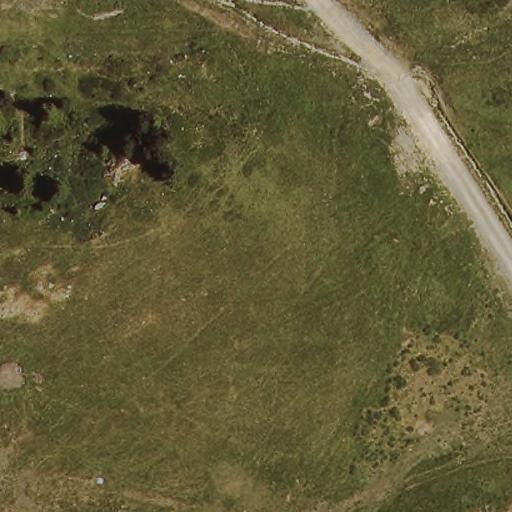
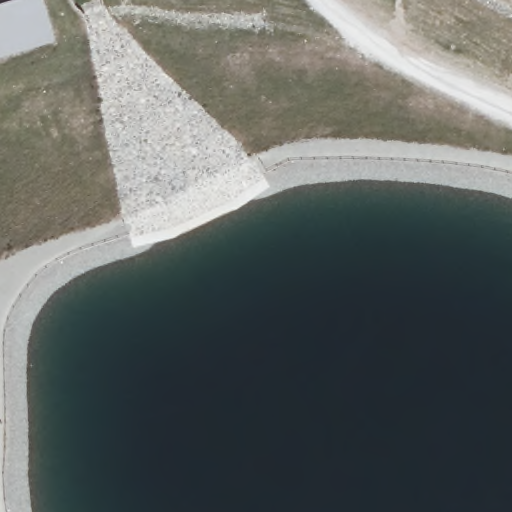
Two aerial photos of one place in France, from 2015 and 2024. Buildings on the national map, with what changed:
new [(55,41),(0,58),(0,7),(21,0),(42,0),(55,41)]

